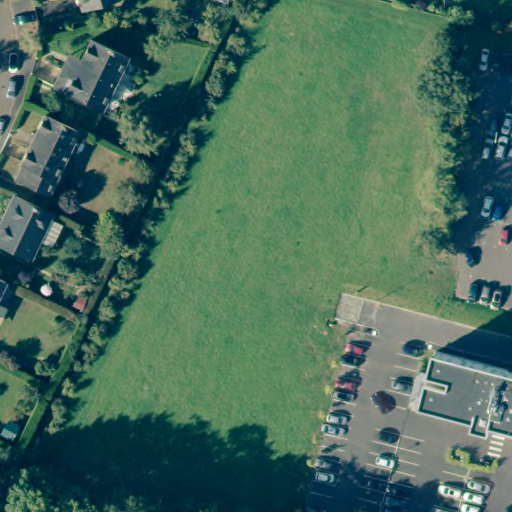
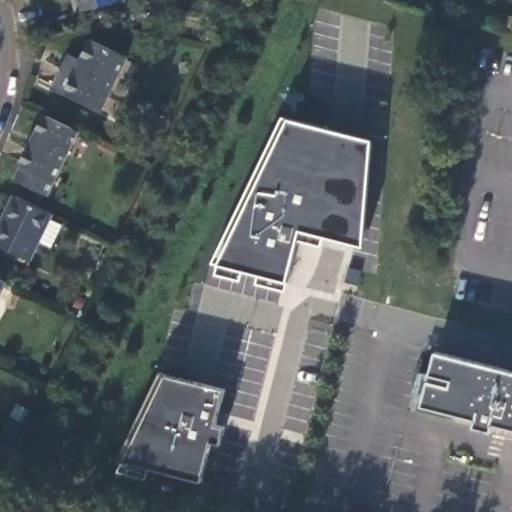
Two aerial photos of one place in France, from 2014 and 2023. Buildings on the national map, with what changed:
unchanged [(85,7),(83,0),(113,0),(85,7)]
unchanged [(121,55),(96,107),(49,84),(57,66),(65,50),(77,57),(86,39),(121,55)]
unchanged [(44,192),(12,177),(17,166),(16,165),(42,112),(75,128),(44,192)]
new [(365,245),(301,229),(287,281),(219,265),(288,121),(372,141),(365,245)]
unchanged [(59,222),(47,242),(37,236),(27,256),(0,243),(0,223),(15,192),(50,210),(47,215),(59,222)]
unchanged [(0,283),(6,285),(0,297),(0,283)]
unchanged [(451,380),(430,375),(436,352),(512,372),(512,428),(491,422),(488,431),(472,427),(476,419),(422,405),(427,382),(448,387),(451,380)]
new [(215,425),(225,426),(221,444),(211,442),(201,480),(126,459),(166,376),(225,390),(215,425)]

